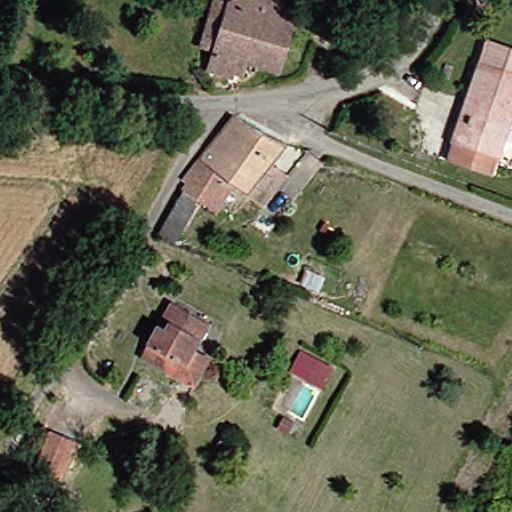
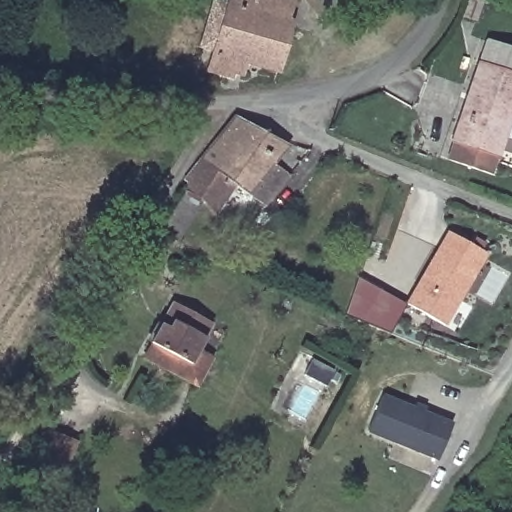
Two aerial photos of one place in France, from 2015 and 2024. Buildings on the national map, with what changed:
unchanged [(237,78),(225,76),(213,76),(218,56),(202,53),(210,5),(214,5),(228,8),(230,0),(286,0),(285,10),(284,16),(289,18),(279,64),(252,61),(251,76),(247,79),(237,78)]
unchanged [(462,125),(470,100),(482,66),(512,76),(512,119),(492,174),(449,159),(462,125)]
unchanged [(189,181),(201,159),(230,110),(282,145),(259,179),(237,164),(228,175),(214,197),(189,181)]
unchanged [(186,194),(206,206),(188,236),(171,244),(160,235),(186,194)]
unchanged [(284,211),(278,225),(260,216),(267,202),(284,211)]
new [(448,325),(410,303),(451,230),(488,251),(448,325)]
new [(393,333),(348,315),(362,275),(410,303),(393,333)]
unchanged [(196,383),(144,355),(152,341),(175,300),(216,322),(200,349),(212,356),(196,383)]
new [(452,422),(437,463),(368,434),(383,395),(452,422)]
unchanged [(47,428),(71,441),(50,479),(26,466),(47,428)]

